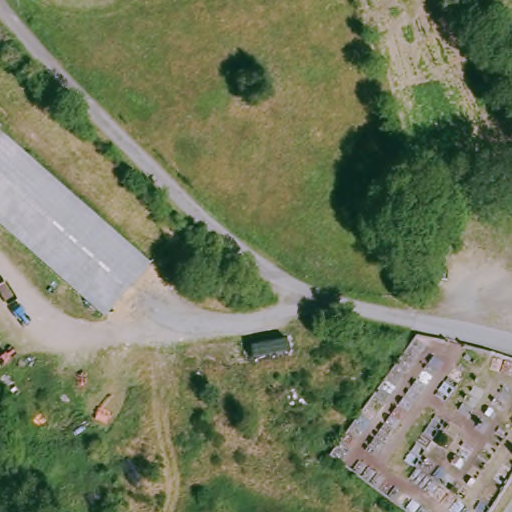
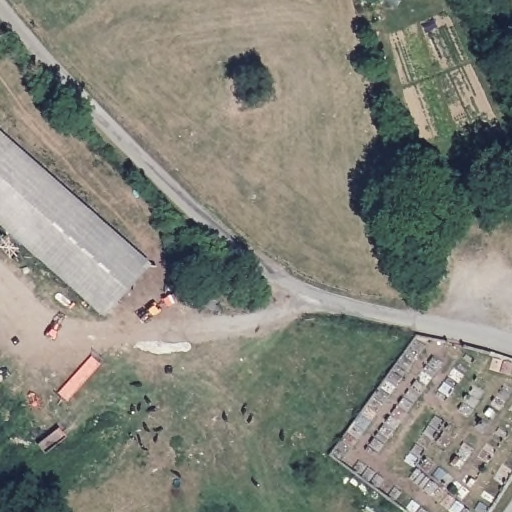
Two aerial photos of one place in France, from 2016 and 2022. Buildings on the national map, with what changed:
unchanged [(152,263),(107,314),(41,258),(0,223),(0,137),(152,263)]

